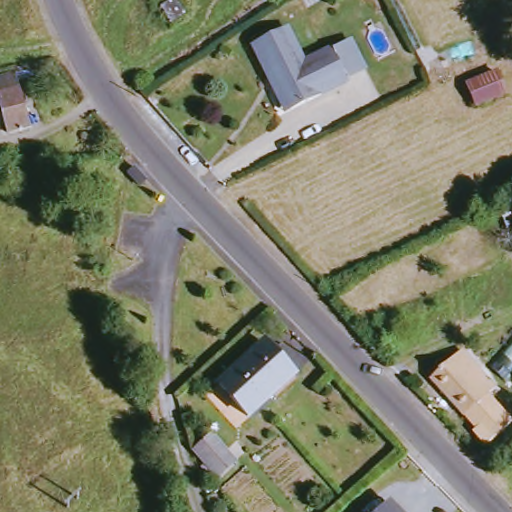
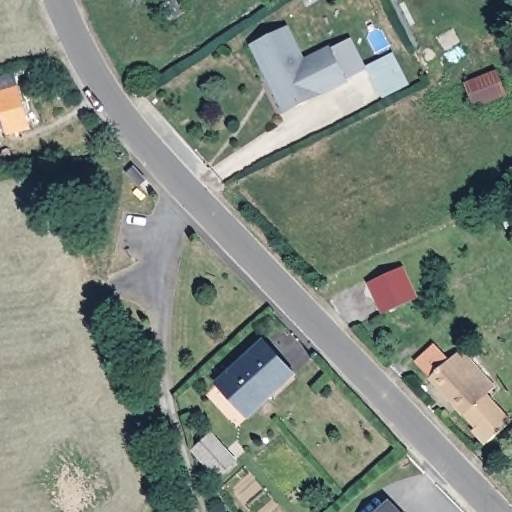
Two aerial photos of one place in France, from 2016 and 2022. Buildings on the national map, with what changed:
unchanged [(172,17),(160,2),(163,0),(181,0),(187,9),(172,17)]
unchanged [(272,77),(257,47),(294,31),(310,63),(335,51),(352,85),(295,110),(290,113),(272,77)]
unchanged [(5,136),(0,120),(0,81),(28,72),(43,125),(5,136)]
unchanged [(500,72),(510,95),(482,107),(472,82),(500,72)]
new [(418,298),(383,315),(368,283),(403,267),(418,298)]
unchanged [(249,417),(220,386),(268,345),(295,377),(249,417)]
unchanged [(430,381),(460,351),(497,390),(490,397),(512,422),(490,443),(430,381)]
unchanged [(227,477),(202,449),(215,437),(239,466),(227,477)]
unchanged [(401,512),(385,512),(393,504),(401,512)]

